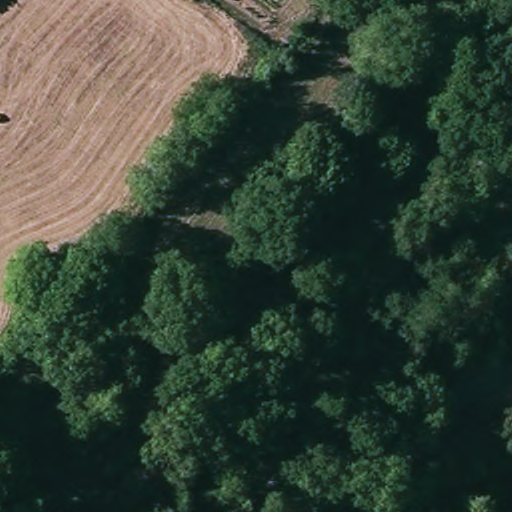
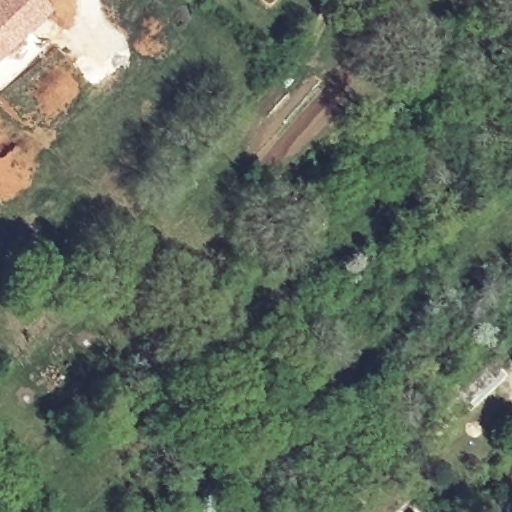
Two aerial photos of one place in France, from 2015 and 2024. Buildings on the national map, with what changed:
new [(52,14),(0,63),(0,0),(38,0),(52,14)]
new [(0,89),(0,73),(8,81),(0,89)]
unchanged [(291,229),(334,189),(346,203),(304,243),(291,229)]
unchanged [(289,221),(275,204),(292,191),(305,207),(289,221)]
unchanged [(209,512),(198,512),(207,507),(209,512)]

